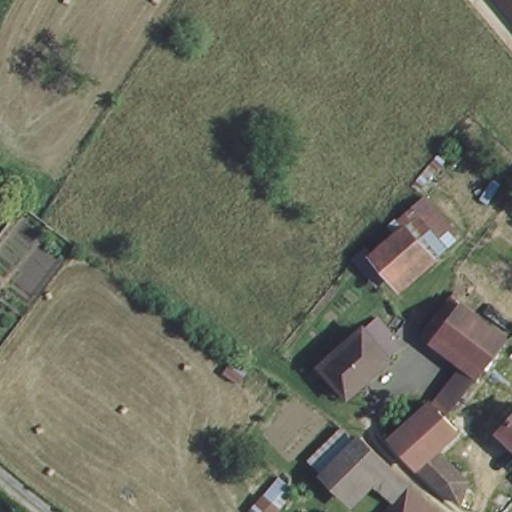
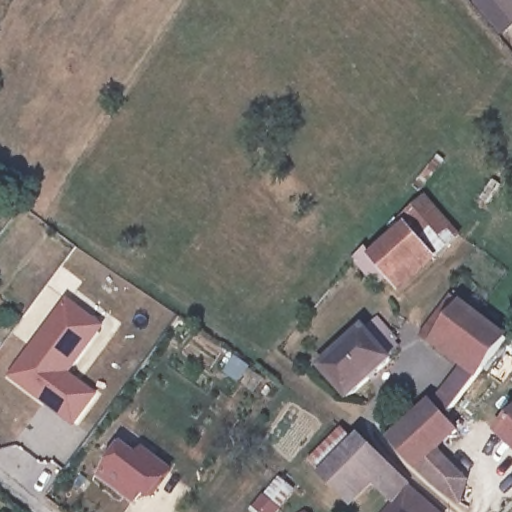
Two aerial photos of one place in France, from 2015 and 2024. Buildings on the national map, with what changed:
unchanged [(512,0),(512,12),(502,0),(512,0)]
unchanged [(400,294),(389,283),(376,293),(354,258),(366,243),(372,250),(393,229),(388,218),(429,191),(460,234),(400,294)]
new [(97,322),(68,365),(95,385),(73,417),(6,367),(61,293),(97,322)]
unchanged [(451,315),(463,302),(492,328),(473,355),(440,328),(432,337),(421,329),(440,306),(451,315)]
unchanged [(390,353),(352,387),(328,362),(367,327),(390,353)]
unchanged [(512,354),(512,370),(479,407),(472,401),(429,442),(462,483),(452,492),(435,483),(389,429),(427,396),(445,413),(495,346),(498,342),(512,354)]
unchanged [(512,422),(512,445),(500,434),(512,422)]
new [(137,446),(141,440),(170,461),(150,488),(140,481),(131,495),(93,469),(118,433),(137,446)]
unchanged [(399,504),(383,490),(360,512),(316,471),(362,434),(434,512),(392,512),(399,504)]

